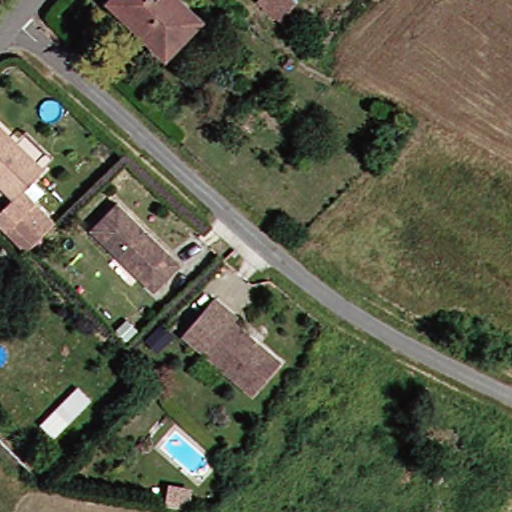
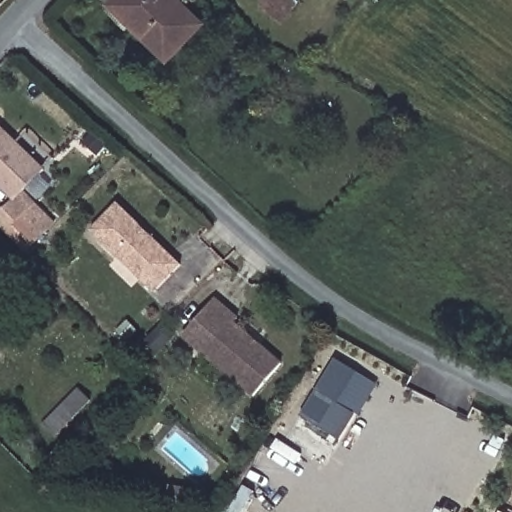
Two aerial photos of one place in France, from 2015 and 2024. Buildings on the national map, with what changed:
unchanged [(109,2),(111,0),(121,0),(179,0),(201,21),(166,57),(130,22),(109,2)]
unchanged [(259,6),(263,0),(295,0),(280,21),(259,6)]
unchanged [(15,201),(0,187),(0,128),(45,171),(15,201)]
unchanged [(117,204),(180,265),(154,292),(90,230),(117,204)]
unchanged [(39,237),(25,251),(4,230),(19,216),(39,237)]
unchanged [(281,365),(254,396),(183,336),(215,299),(237,318),(234,323),(281,365)]
new [(339,441),(301,417),(336,361),(375,382),(339,441)]
unchanged [(89,400),(55,433),(45,423),(79,390),(89,400)]
new [(171,484),(196,489),(192,511),(167,507),(171,484)]
new [(501,511),(501,512),(500,512),(501,511)]

